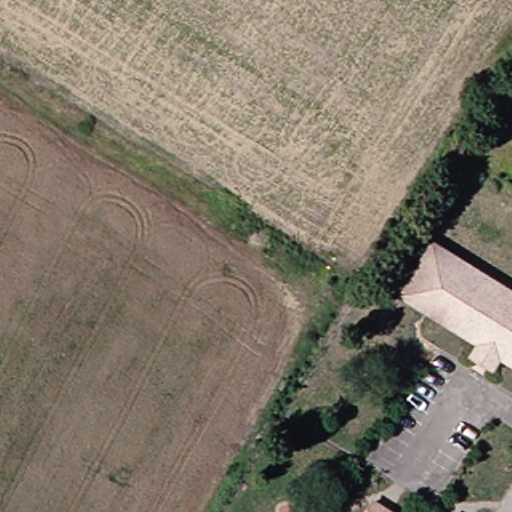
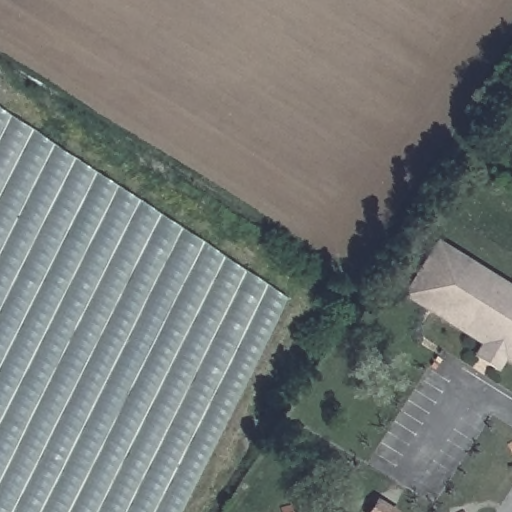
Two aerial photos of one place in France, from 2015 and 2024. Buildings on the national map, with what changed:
new [(180,512),(0,512),(0,109),(285,300),(180,512)]
unchanged [(465,270),(438,317),(407,298),(433,250),(465,270)]
unchanged [(474,364),(485,346),(438,317),(465,270),(512,298),(512,362),(509,360),(498,378),(474,364)]

